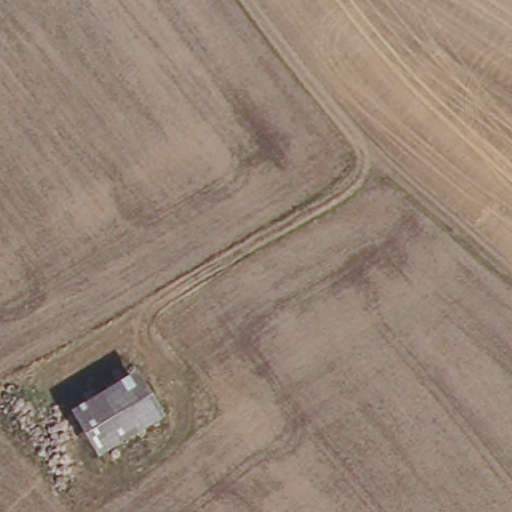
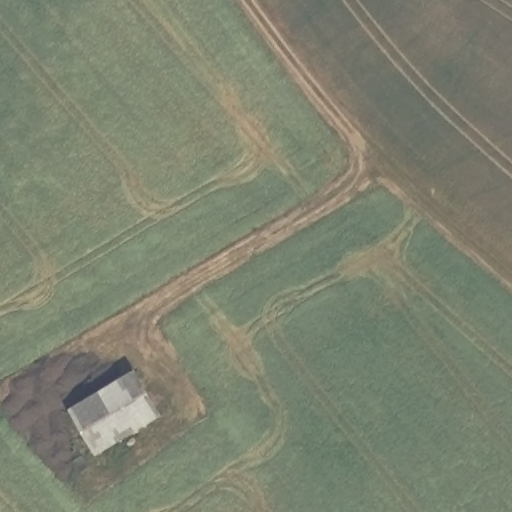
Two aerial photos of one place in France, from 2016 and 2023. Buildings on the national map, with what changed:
unchanged [(140,373),(164,417),(97,452),(72,408),(140,373)]

